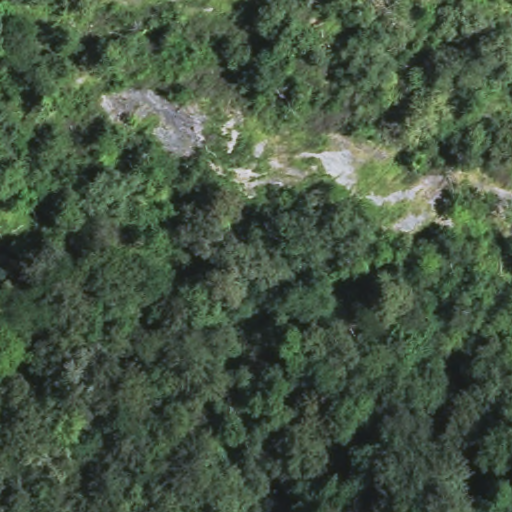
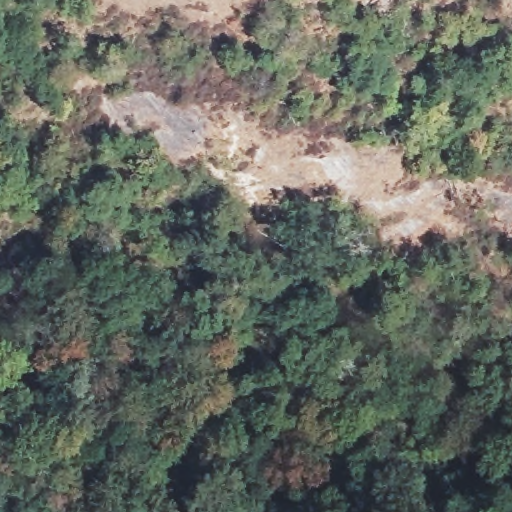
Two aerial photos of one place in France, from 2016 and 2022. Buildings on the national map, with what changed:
[]

